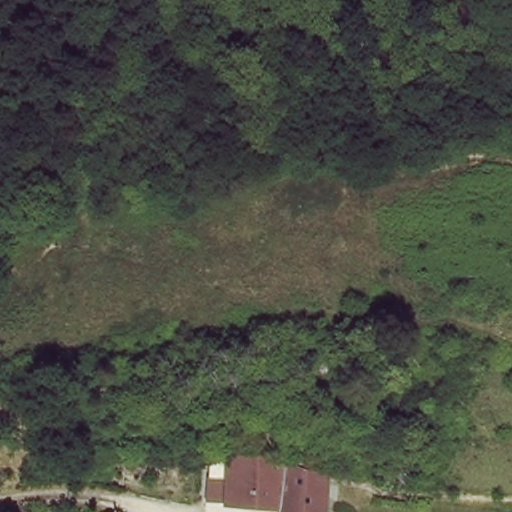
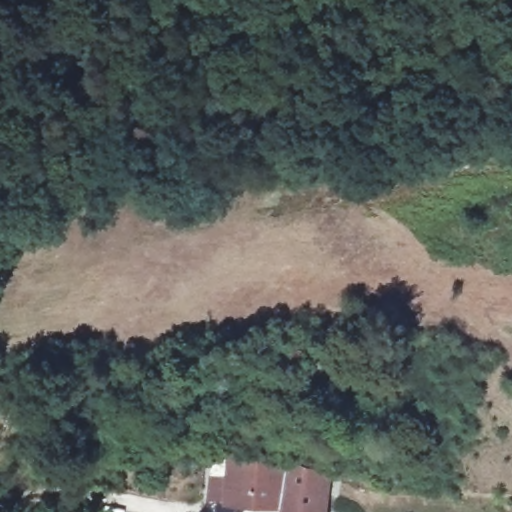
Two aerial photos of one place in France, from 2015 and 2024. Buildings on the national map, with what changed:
unchanged [(227,503),(233,452),(283,455),(321,476),(319,512),(287,512),(287,510),(227,503)]

